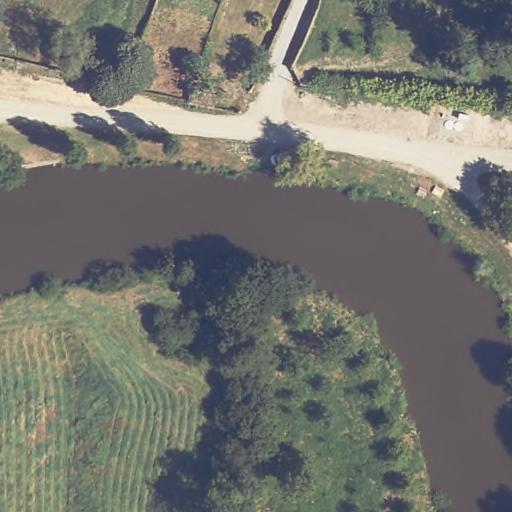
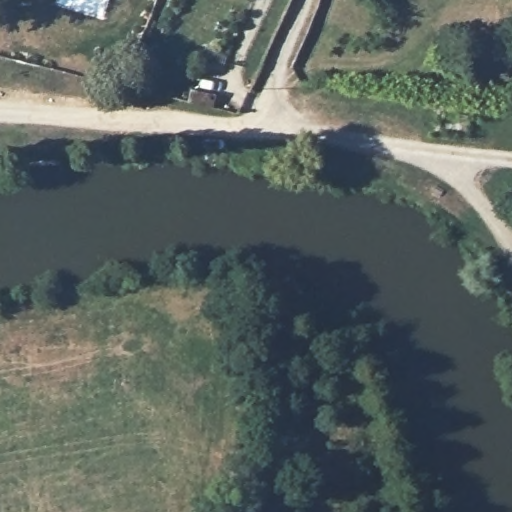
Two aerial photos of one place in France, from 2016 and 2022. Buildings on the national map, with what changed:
[]

